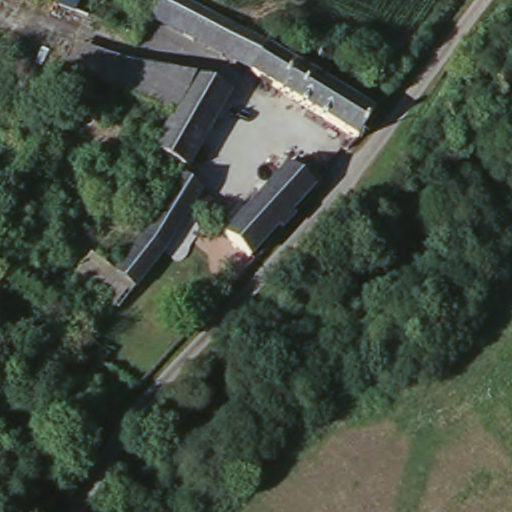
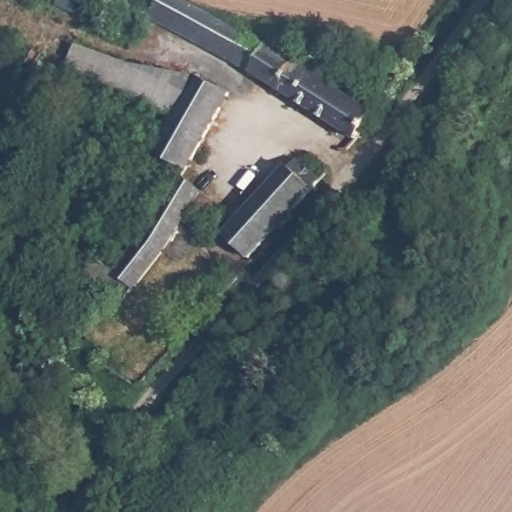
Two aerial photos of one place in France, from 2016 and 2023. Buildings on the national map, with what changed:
unchanged [(147,23),(149,21),(158,0),(166,0),(263,46),(248,73),(147,23)]
unchanged [(356,135),(248,73),(263,46),(267,40),(295,56),(300,48),(328,64),(323,75),(377,108),(356,135)]
unchanged [(154,151),(171,119),(65,65),(71,44),(129,61),(198,72),(229,91),(187,168),(154,151)]
unchanged [(283,209),(286,213),(274,226),(268,221),(240,255),(219,238),(287,156),(310,175),(283,209)]
unchanged [(185,202),(171,228),(157,252),(134,284),(114,270),(151,213),(175,171),(205,197),(197,211),(185,202)]

